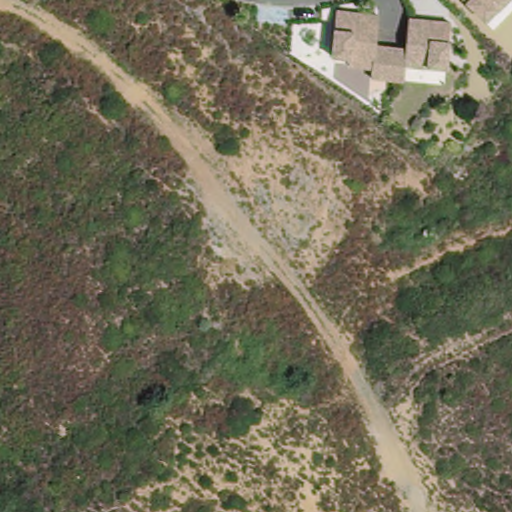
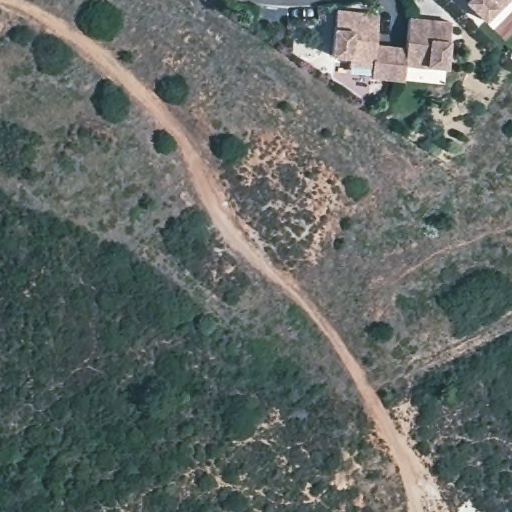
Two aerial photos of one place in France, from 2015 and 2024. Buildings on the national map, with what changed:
unchanged [(471,0),(512,0),(512,5),(507,10),(500,3),(487,16),(471,0)]
unchanged [(404,69),(403,76),(370,73),(371,66),(350,63),(350,54),(332,51),(337,6),(378,11),(375,41),(405,44),(409,14),(450,18),(445,64),(427,61),(425,71),(404,69)]

